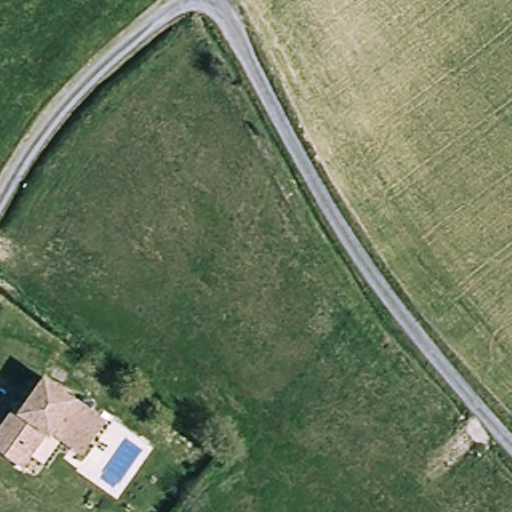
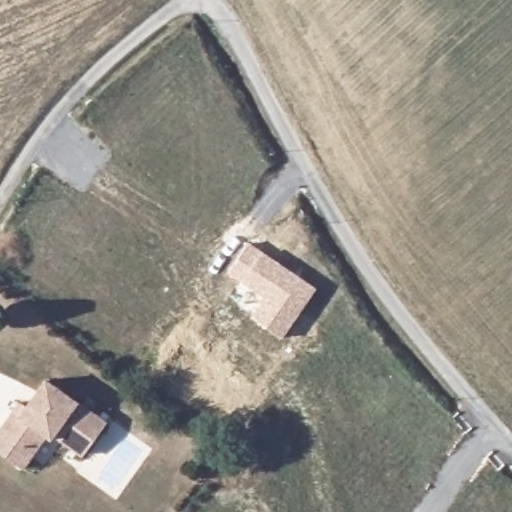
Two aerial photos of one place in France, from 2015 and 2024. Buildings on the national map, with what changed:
new [(283,337),(251,316),(264,297),(228,272),(249,242),(316,287),(283,337)]
unchanged [(48,442),(43,440),(23,469),(0,454),(0,424),(4,418),(18,401),(27,407),(44,383),(104,427),(90,445),(82,458),(52,437),(48,442)]

